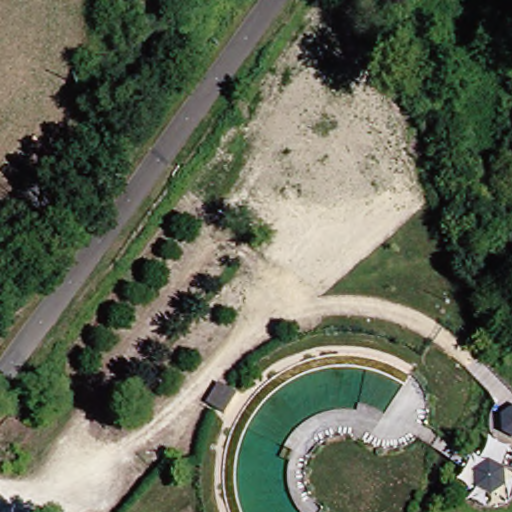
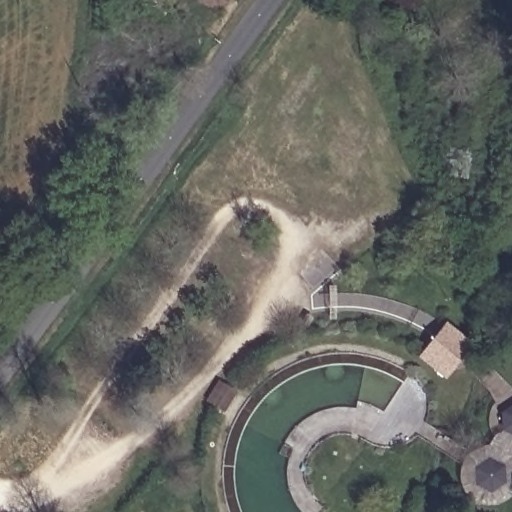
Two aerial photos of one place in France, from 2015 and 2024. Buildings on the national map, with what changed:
new [(418,357),(446,322),(474,343),(446,380),(418,357)]
unchanged [(500,432),(500,412),(512,405),(512,437),(500,432)]
unchanged [(505,468),(503,486),(488,492),(475,484),(473,465),(490,458),(505,468)]

